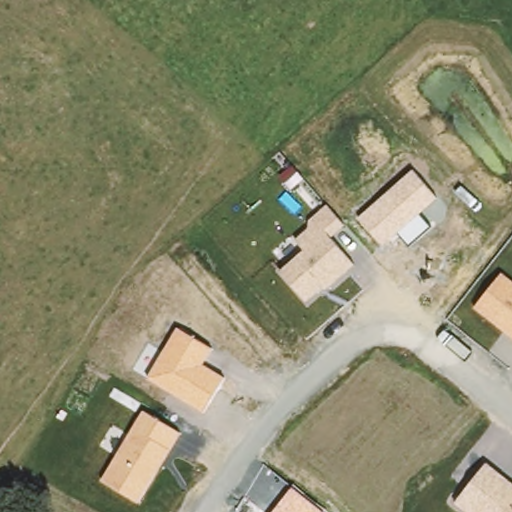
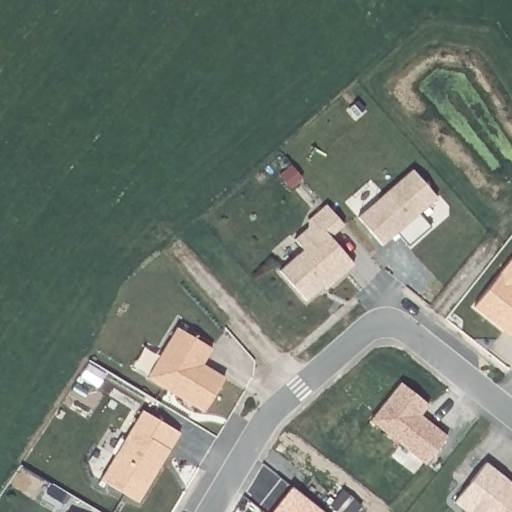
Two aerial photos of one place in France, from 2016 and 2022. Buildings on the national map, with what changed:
unchanged [(438,198),(420,215),(431,227),(408,246),(398,234),(382,245),(358,217),(412,170),(438,198)]
unchanged [(280,270),(304,250),(295,239),(308,227),(309,219),(327,205),(345,226),(330,237),(354,264),(324,288),(322,287),(306,302),(280,270)]
unchanged [(502,273),(512,281),(512,337),(474,308),(502,273)]
unchanged [(148,377),(177,327),(213,348),(203,365),(225,377),(203,412),(148,377)]
new [(389,376),(417,397),(409,408),(436,430),(415,457),(360,415),(389,376)]
unchanged [(101,479),(143,410),(181,433),(138,503),(101,479)]
unchanged [(454,503),(487,462),(512,482),(512,512),(466,512),(454,503)]
unchanged [(292,487),(324,512),(273,512),(292,487)]
new [(62,508),(68,512),(60,512),(62,508)]

